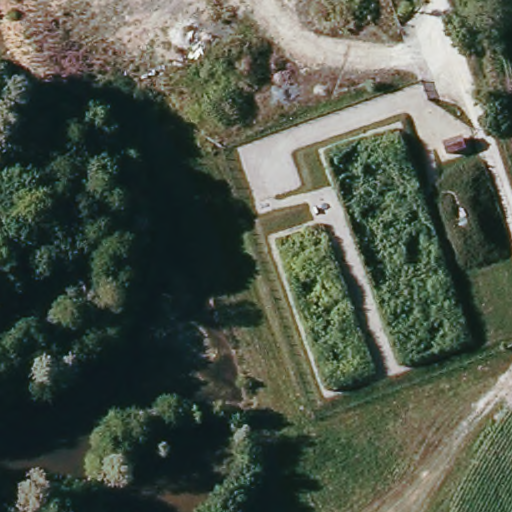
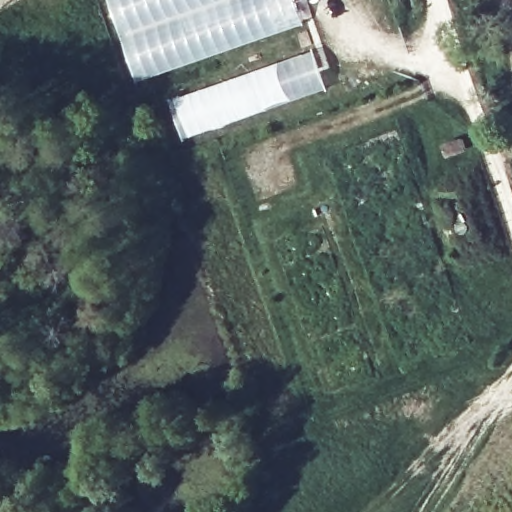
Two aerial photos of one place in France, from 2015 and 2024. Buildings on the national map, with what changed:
new [(136,82),(112,19),(106,0),(296,0),(304,24),(136,82)]
new [(313,47),(326,89),(224,126),(183,139),(169,98),(313,47)]
unchanged [(448,142),(428,149),(424,139),(444,132),(448,142)]

